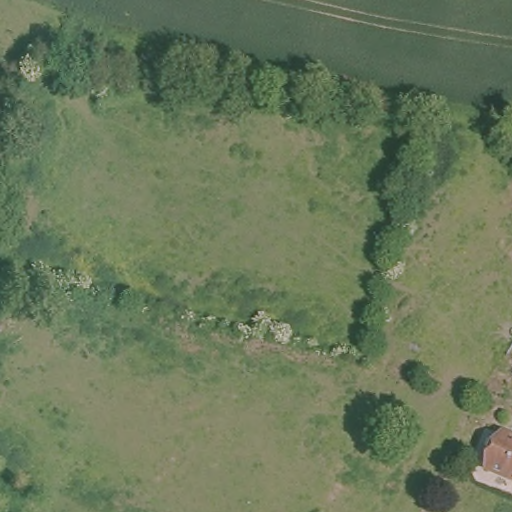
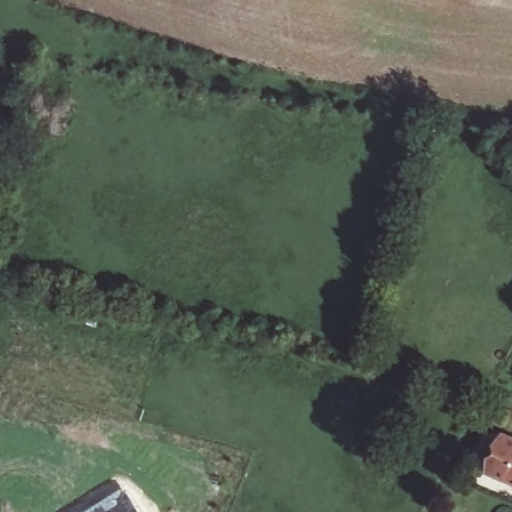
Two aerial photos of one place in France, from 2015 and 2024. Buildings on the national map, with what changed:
unchanged [(508,433),(512,435),(512,480),(490,469),(508,433)]
new [(85,512),(123,488),(139,512),(85,512)]

